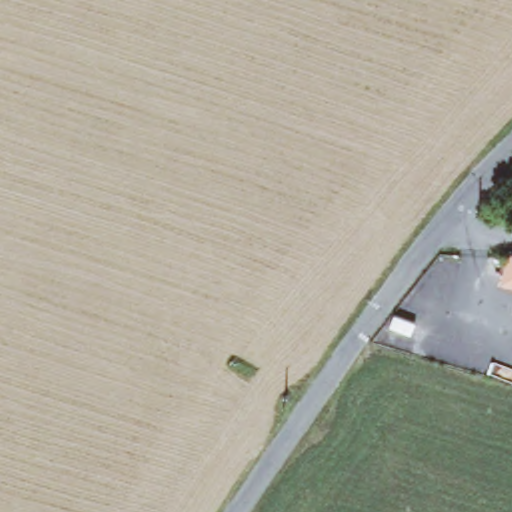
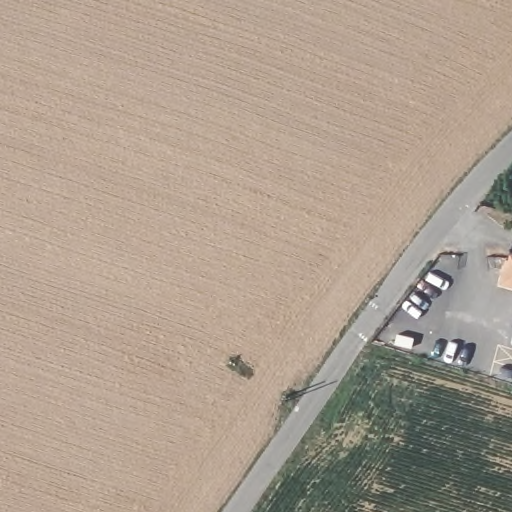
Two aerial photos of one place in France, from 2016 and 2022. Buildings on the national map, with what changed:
unchanged [(508,250),(512,252),(512,283),(501,279),(508,250)]

